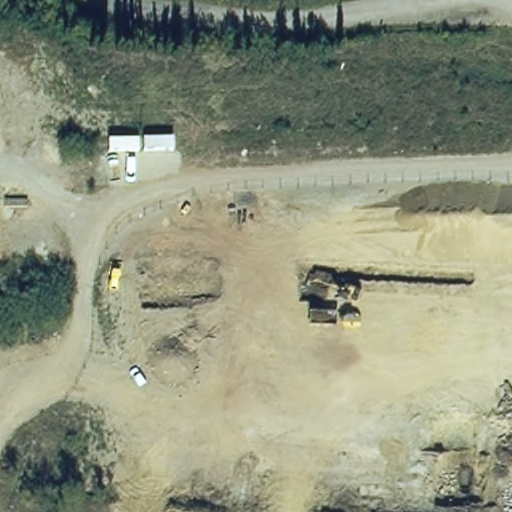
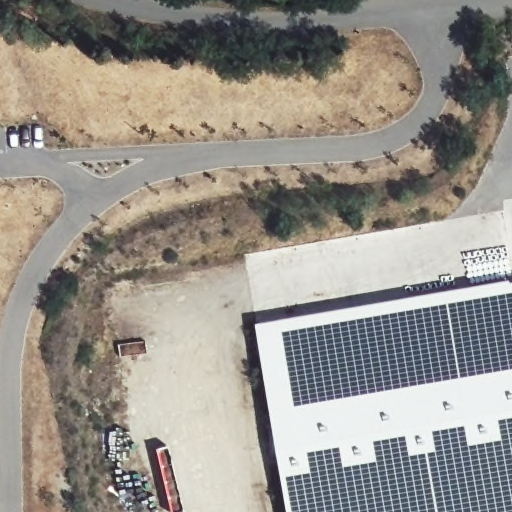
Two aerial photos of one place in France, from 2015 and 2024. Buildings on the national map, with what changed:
demolished [(260,265),(287,266),(512,278),(512,369),(511,369),(510,390),(376,382),(377,362),(284,358),(256,357),(260,265)]
new [(512,282),(512,512),(289,512),(257,325),(512,282)]
demolished [(362,453),(360,496),(125,486),(131,440),(362,453)]
demolished [(430,456),(430,501),(371,499),(372,453),(430,456)]

